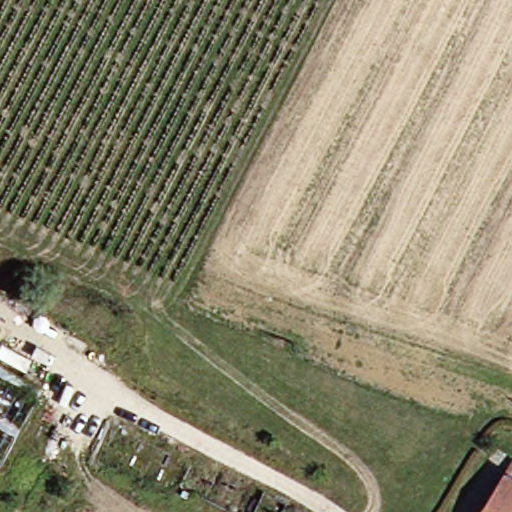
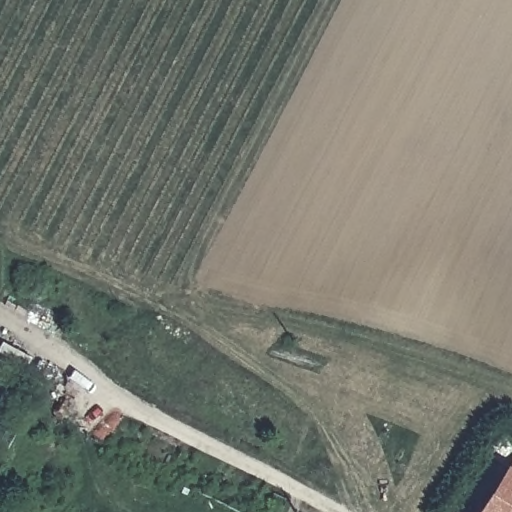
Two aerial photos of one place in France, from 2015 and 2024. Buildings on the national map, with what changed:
unchanged [(0,335),(0,327),(3,329),(0,335)]
unchanged [(0,469),(0,359),(46,385),(0,469)]
unchanged [(512,477),(512,512),(488,512),(512,477)]

